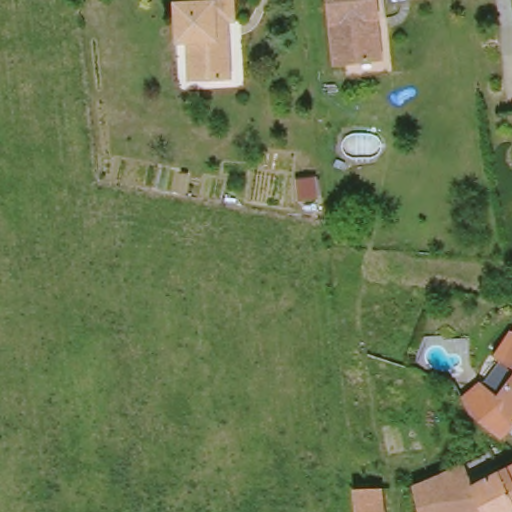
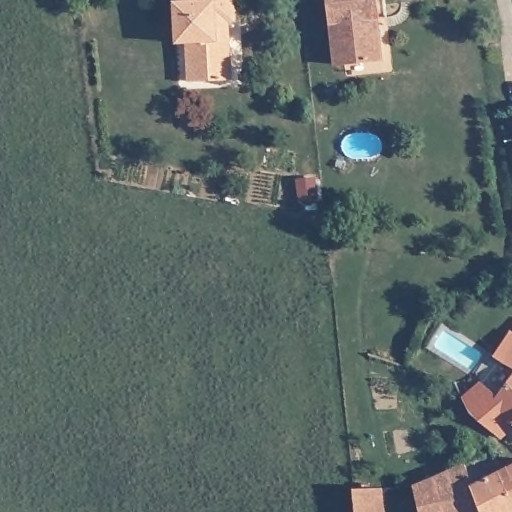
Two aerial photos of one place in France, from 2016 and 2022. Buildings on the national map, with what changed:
unchanged [(190,39),(183,38),(181,0),(242,0),(243,22),(224,22),(224,37),(236,37),(237,78),(210,79),(193,79),(191,60),(190,39)]
unchanged [(379,19),(383,61),(343,65),(332,0),(388,0),(390,17),(379,19)]
unchanged [(509,359),(512,355),(512,362),(509,359)]
unchanged [(497,404),(512,386),(512,424),(497,404)]
unchanged [(419,487),(467,465),(477,487),(505,474),(512,471),(512,512),(425,512),(419,487)]
unchanged [(363,489),(389,488),(390,512),(365,512),(363,489)]

